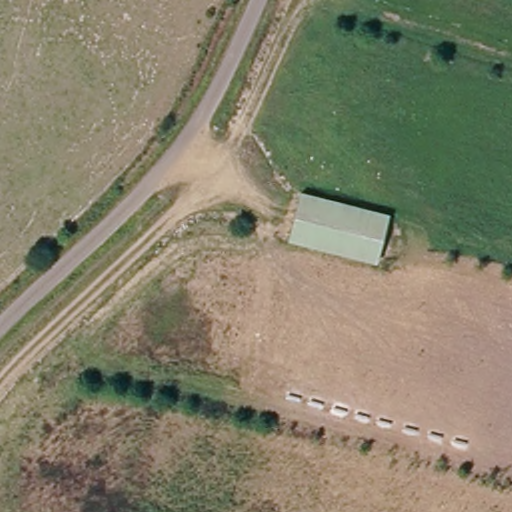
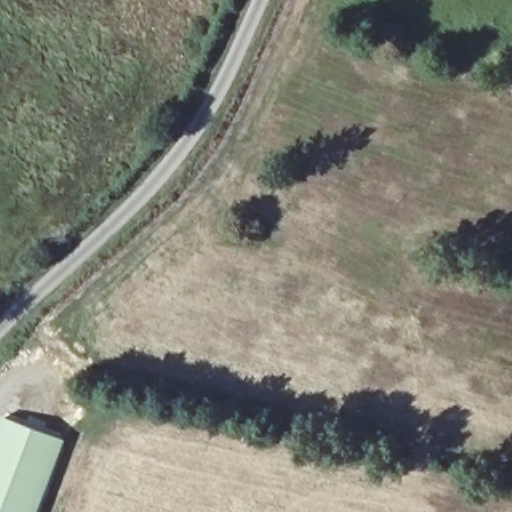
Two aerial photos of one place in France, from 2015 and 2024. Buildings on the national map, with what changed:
demolished [(275,237),(287,190),(394,218),(384,265),(275,237)]
new [(65,439),(38,512),(0,512),(0,422),(2,416),(65,439)]

